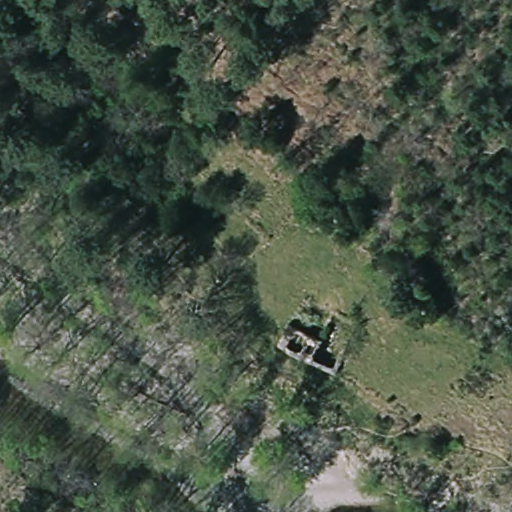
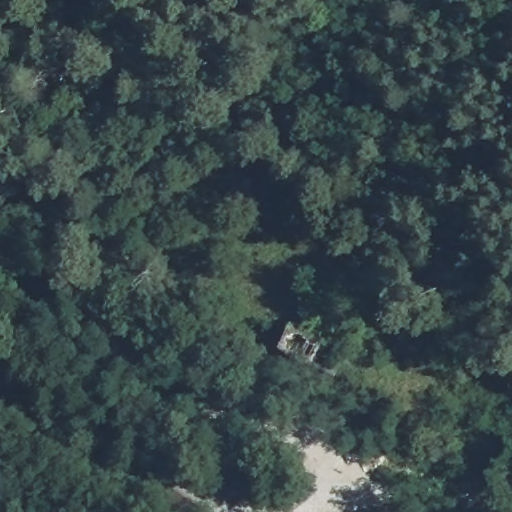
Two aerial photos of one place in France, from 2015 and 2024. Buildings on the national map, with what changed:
unchanged [(308,361),(283,352),(295,323),(322,335),(308,361)]

